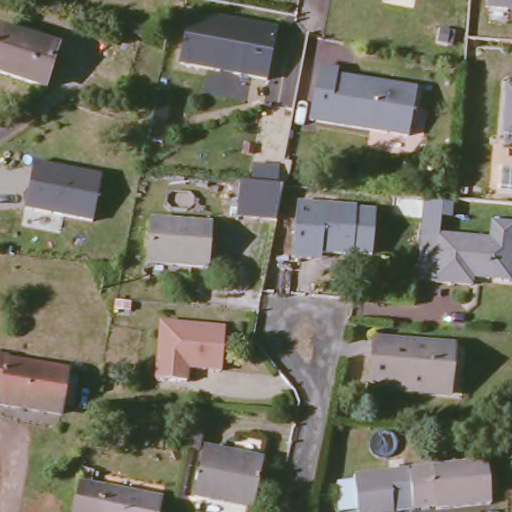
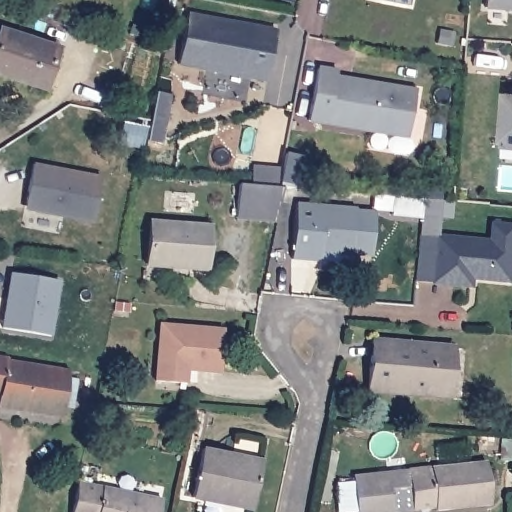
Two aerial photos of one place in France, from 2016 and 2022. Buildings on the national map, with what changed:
unchanged [(484,0),(512,0),(512,11),(483,9),(484,0)]
unchanged [(276,34),(267,84),(179,66),(188,16),(276,34)]
unchanged [(52,49),(35,89),(0,76),(0,26),(27,35),(26,39),(52,49)]
unchanged [(336,74),(335,80),(374,88),(373,91),(385,94),(386,90),(415,95),(405,143),(307,123),(317,70),(336,74)]
unchanged [(502,90),(512,91),(512,144),(498,143),(502,90)]
unchanged [(34,164),(102,178),(93,224),(24,213),(34,164)]
unchanged [(285,254),(290,201),(353,208),(352,212),(368,213),(365,243),(351,243),(351,247),(307,244),(306,257),(285,254)]
unchanged [(422,206),(420,220),(395,217),(396,203),(422,206)]
unchanged [(175,260),(145,259),(149,222),(210,227),(206,269),(175,266),(175,260)]
unchanged [(485,283),(485,278),(475,278),(475,287),(420,283),(421,270),(425,241),(490,244),(491,227),(512,229),(512,257),(510,284),(485,283)]
new [(61,283),(52,337),(5,329),(13,274),(61,283)]
unchanged [(181,386),(157,384),(161,328),(225,333),(221,374),(187,372),(186,387),(181,386)]
unchanged [(416,389),(366,385),(370,339),(445,344),(443,383),(442,391),(416,389)]
unchanged [(10,359),(10,365),(65,376),(57,417),(0,406),(0,394),(0,357),(10,359)]
unchanged [(207,413),(199,453),(188,451),(197,412),(207,413)]
unchanged [(224,504),(194,498),(203,452),(264,464),(255,505),(255,509),(224,504)]
unchanged [(488,461),(491,503),(432,507),(432,502),(407,503),(406,487),(386,488),(386,506),(357,507),(355,468),(488,461)]
unchanged [(157,496),(154,512),(66,512),(72,481),(157,496)]

